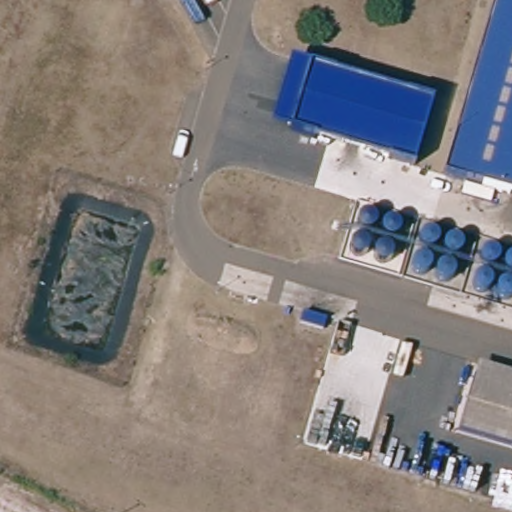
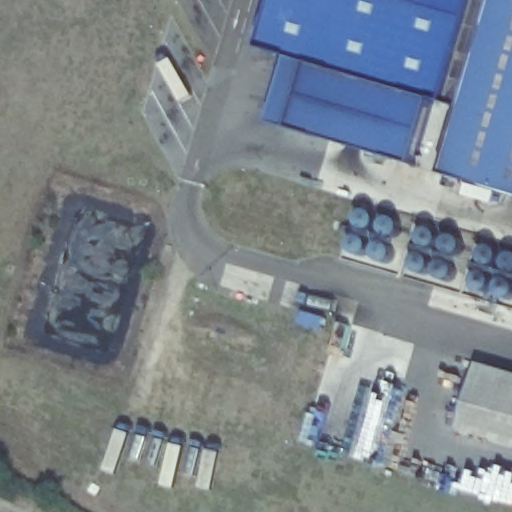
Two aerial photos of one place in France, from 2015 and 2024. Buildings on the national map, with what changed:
new [(446,105),(432,101),(290,58),(261,50),(276,0),(477,0),(446,105)]
unchanged [(493,0),(512,0),(512,191),(441,170),(493,0)]
unchanged [(432,101),(413,164),(273,121),(290,58),(432,101)]
unchanged [(323,339),(301,332),(304,321),(326,328),(323,339)]
unchanged [(512,431),(464,416),(479,363),(512,373),(512,431)]

